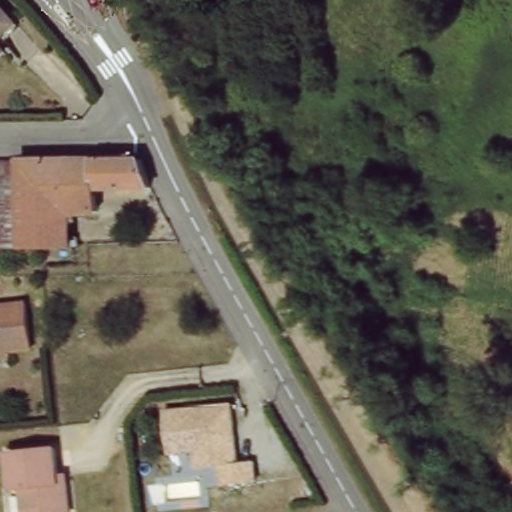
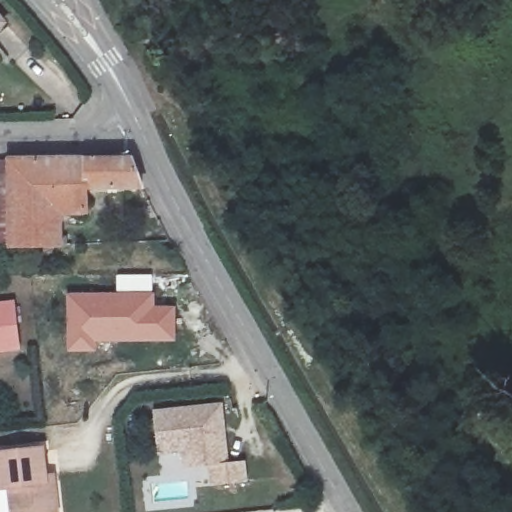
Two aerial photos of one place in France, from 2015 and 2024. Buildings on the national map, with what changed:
unchanged [(7,21),(0,27),(0,13),(7,21)]
unchanged [(0,250),(0,163),(8,163),(8,250),(0,250)]
unchanged [(18,249),(14,164),(140,165),(141,167),(148,190),(90,190),(90,212),(63,210),(64,247),(18,249)]
new [(116,274),(152,273),(154,290),(155,305),(176,305),(176,341),(97,342),(97,352),(65,352),(66,292),(116,291),(116,274)]
unchanged [(15,341),(16,353),(0,354),(0,304),(11,304),(15,341)]
unchanged [(226,403),(232,461),(248,460),(252,483),(214,486),(211,467),(187,469),(185,452),(160,455),(158,410),(226,403)]
unchanged [(0,490),(0,453),(40,447),(44,475),(51,473),(53,481),(57,512),(11,512),(8,488),(0,490)]

